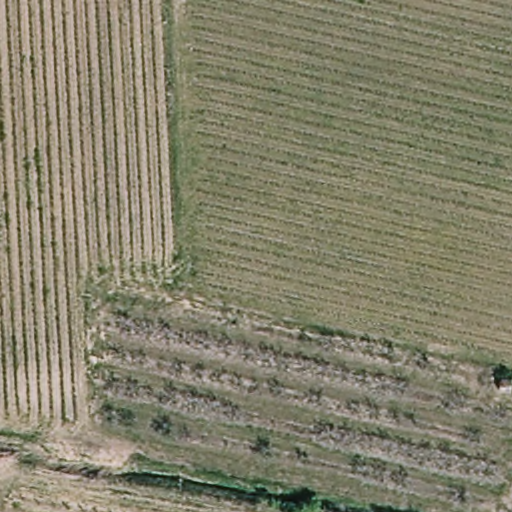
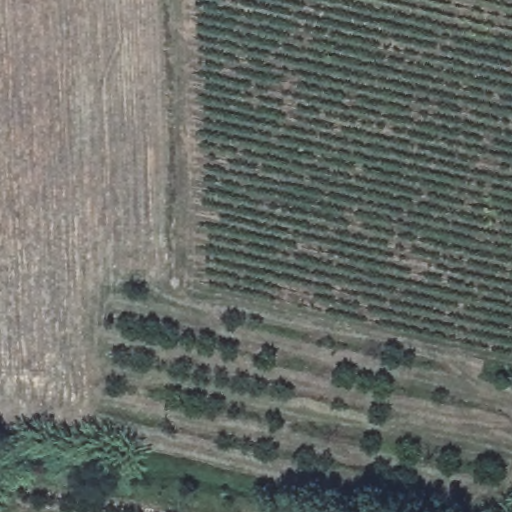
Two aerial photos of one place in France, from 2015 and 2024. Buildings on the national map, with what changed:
unchanged [(504,373),(502,389),(490,387),(492,371),(504,373)]

